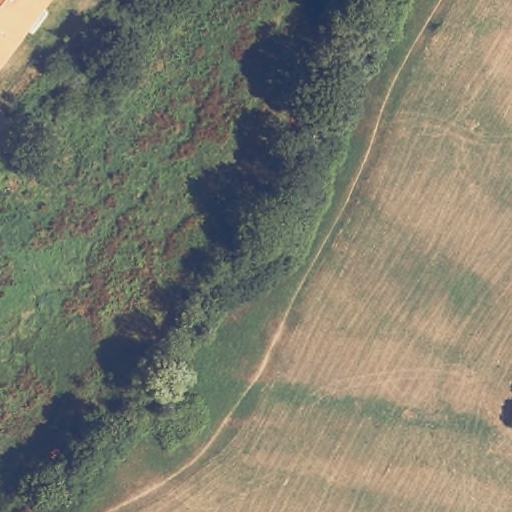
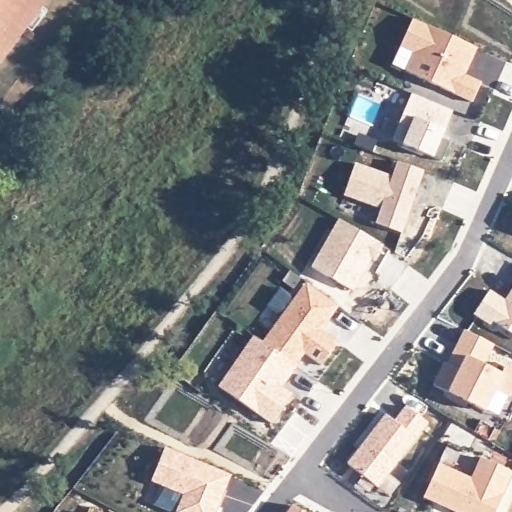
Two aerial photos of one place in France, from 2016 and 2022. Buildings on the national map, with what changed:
unchanged [(0,0),(48,0),(0,66),(0,0)]
new [(412,19),(476,48),(464,76),(481,83),(472,102),(406,71),(419,45),(404,38),(412,19)]
new [(411,94),(452,111),(441,138),(449,141),(440,161),(391,141),(411,94)]
new [(355,164),(392,177),(397,163),(423,171),(401,233),(376,224),(381,209),(343,196),(355,164)]
new [(338,220),(383,246),(375,261),(370,258),(351,290),(311,267),(338,220)]
new [(306,283),(338,306),(321,331),(338,343),(321,366),(305,354),(295,367),(261,343),(306,283)]
new [(505,301),(510,292),(512,290),(512,334),(492,321),(490,325),(474,315),(490,291),(505,301)]
new [(445,364),(453,368),(460,355),(457,348),(465,331),(492,345),(482,365),(501,375),(504,369),(512,373),(512,392),(510,395),(496,388),(484,411),(467,403),(465,408),(446,398),(449,393),(433,386),(445,364)]
new [(252,337),(261,343),(295,367),(296,367),(286,381),(283,379),(280,386),(292,395),(271,424),(219,387),(252,337)]
new [(385,415),(393,422),(405,407),(426,424),(376,488),(346,464),(385,415)]
new [(166,445),(231,472),(215,512),(177,512),(184,495),(151,481),(166,445)]
new [(437,465),(470,480),(480,458),(512,473),(512,476),(495,512),(453,512),(422,498),(437,465)]
new [(290,505),(302,512),(285,512),(290,505)]

